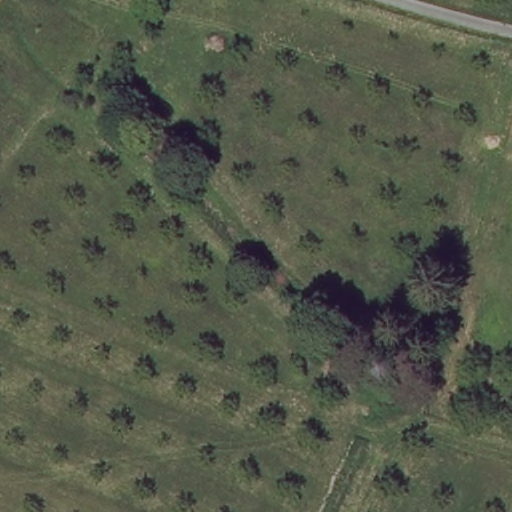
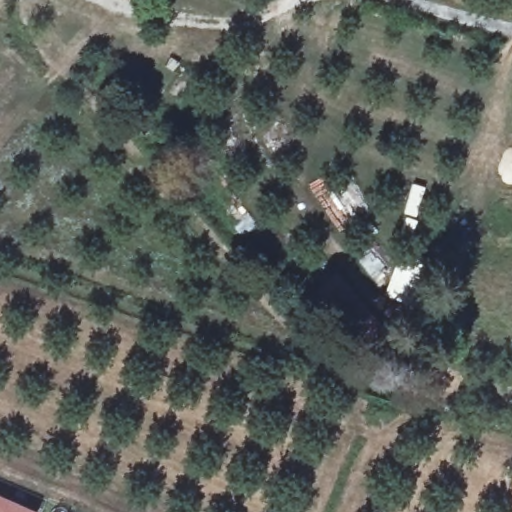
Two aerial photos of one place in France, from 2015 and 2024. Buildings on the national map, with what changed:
new [(36,511),(36,512),(0,512),(0,495),(36,511)]

